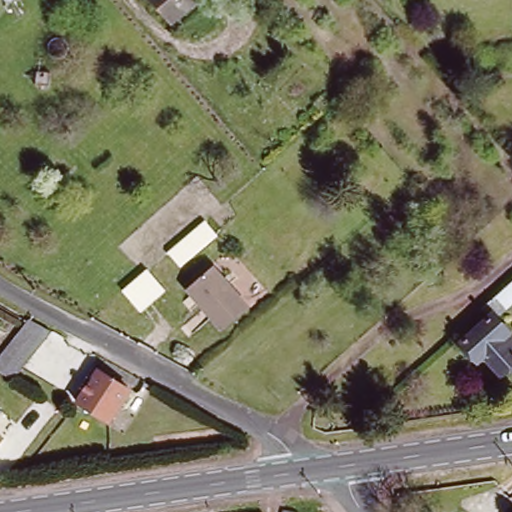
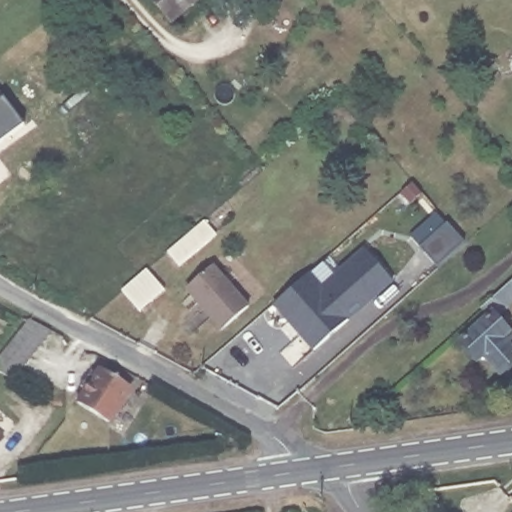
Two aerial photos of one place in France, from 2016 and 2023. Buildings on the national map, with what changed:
unchanged [(154,0),(212,0),(179,27),(154,0)]
unchanged [(332,110),(344,123),(331,135),(319,122),(332,110)]
unchanged [(183,265),(172,254),(208,222),(219,234),(183,265)]
new [(302,335),(275,303),(311,272),(323,287),(366,249),(394,280),(322,342),(315,349),(302,335)]
unchanged [(254,307),(227,330),(192,290),(217,266),(254,307)]
unchanged [(163,312),(157,305),(145,316),(127,296),(153,272),(171,292),(166,297),(172,305),(163,312)]
unchanged [(498,323),(512,339),(512,349),(511,350),(512,352),(512,378),(507,381),(490,361),(482,367),(467,348),(495,323),(487,314),(512,292),(512,311),(498,323)]
unchanged [(0,355),(27,320),(47,332),(10,381),(0,374),(0,355)]
unchanged [(81,402),(101,370),(132,390),(112,422),(81,402)]
unchanged [(0,447),(0,429),(10,437),(0,447)]

